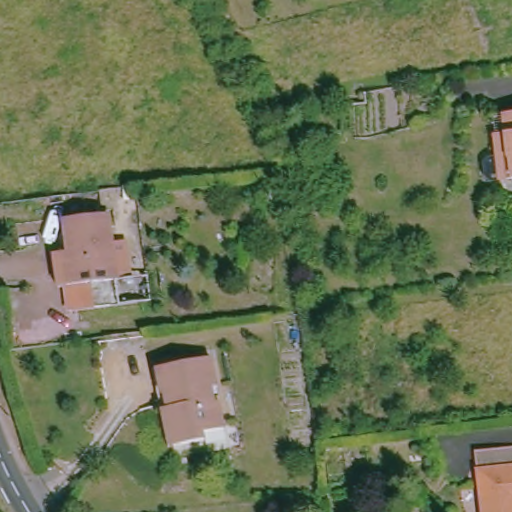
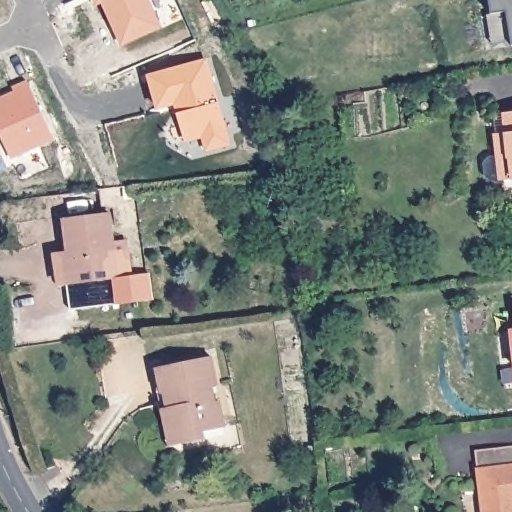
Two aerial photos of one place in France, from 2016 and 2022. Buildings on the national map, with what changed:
new [(112,21),(102,0),(148,0),(157,20),(134,31),(120,37),(112,21)]
new [(511,6),(496,9),(494,0),(512,0),(512,16),(511,6)]
new [(207,56),(232,139),(209,146),(205,132),(189,137),(180,110),(186,108),(184,102),(179,99),(160,105),(150,73),(207,56)]
new [(15,88),(29,81),(55,138),(13,158),(0,130),(0,101),(16,93),(15,88)]
unchanged [(497,182),(497,183),(490,183),(481,175),(480,162),(487,153),(502,151),(500,129),(504,129),(502,115),(512,114),(512,181),(497,182)]
unchanged [(106,210),(111,242),(124,240),(131,275),(117,278),(122,298),(74,306),(70,282),(56,284),(50,255),(59,253),(55,231),(61,230),(59,219),(106,210)]
unchanged [(210,356),(215,384),(209,385),(212,400),(218,399),(223,424),(201,429),(202,439),(181,443),(174,407),(169,408),(166,391),(159,393),(156,367),(210,356)]
unchanged [(512,446),(512,467),(473,472),(471,451),(512,446)]
unchanged [(477,512),(473,474),(512,469),(512,512),(477,512)]

